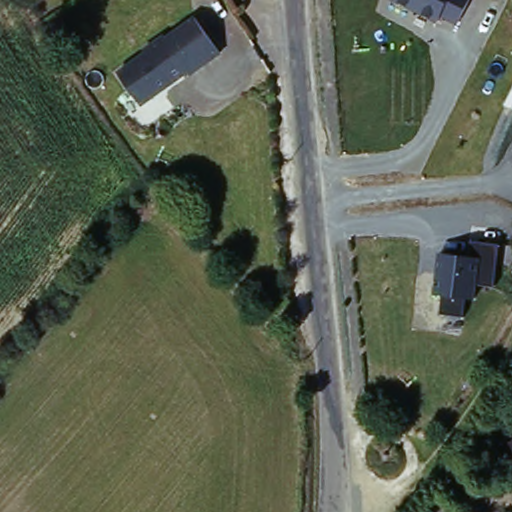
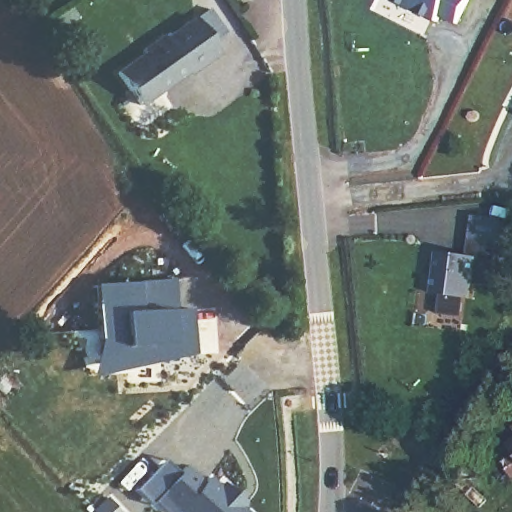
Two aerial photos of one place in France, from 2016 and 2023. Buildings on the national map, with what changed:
unchanged [(441,17),(437,24),(388,0),(470,0),(458,27),(441,17)]
unchanged [(142,105),(120,73),(148,54),(146,52),(167,37),(169,40),(199,19),(224,55),(193,75),(191,72),(164,91),(142,105)]
unchanged [(443,296),(433,295),(439,253),(468,257),(471,240),(502,245),(495,287),(476,285),(473,302),(467,301),(462,318),(440,315),(443,296)]
new [(175,282),(178,312),(189,312),(191,356),(162,361),(138,367),(93,377),(101,342),(97,286),(175,282)]
unchanged [(512,459),(512,466),(508,461),(512,459)]
new [(151,502),(137,489),(165,461),(180,473),(184,467),(202,483),(207,477),(218,488),(222,483),(237,497),(232,502),(244,512),(178,512),(177,511),(176,512),(169,512),(154,498),(151,502)]
new [(107,497),(123,512),(93,512),(92,511),(107,497)]

